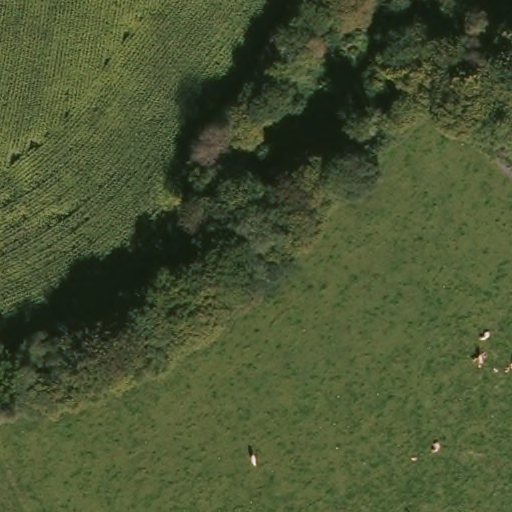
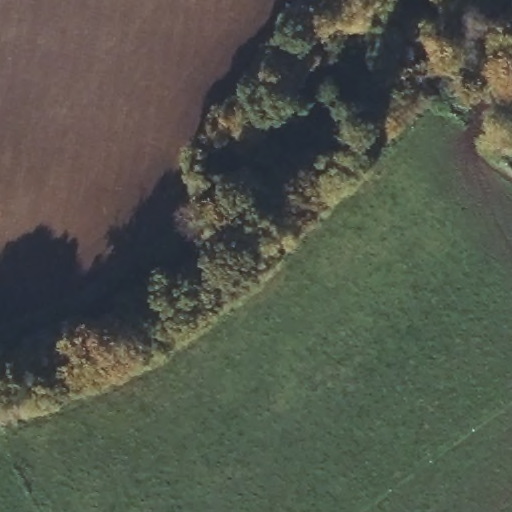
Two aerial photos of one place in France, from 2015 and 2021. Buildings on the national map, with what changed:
[]

